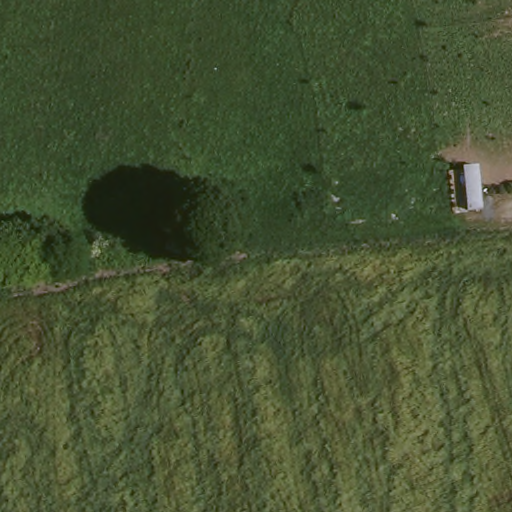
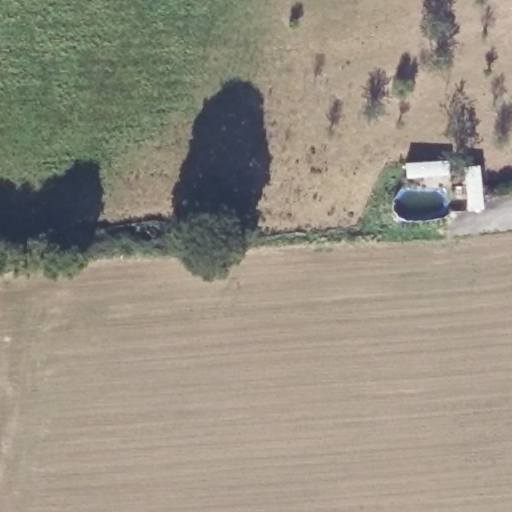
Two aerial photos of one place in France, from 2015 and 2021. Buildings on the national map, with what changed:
[]

